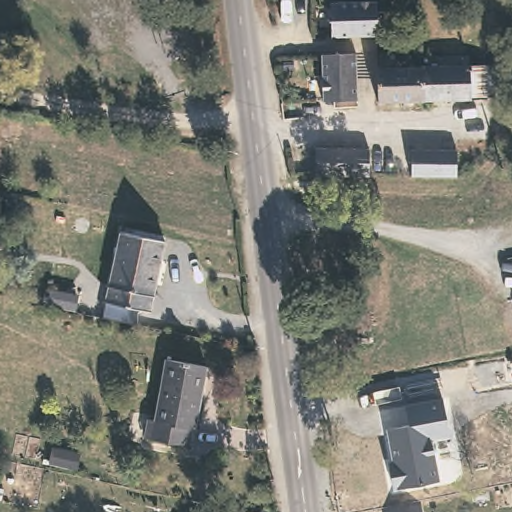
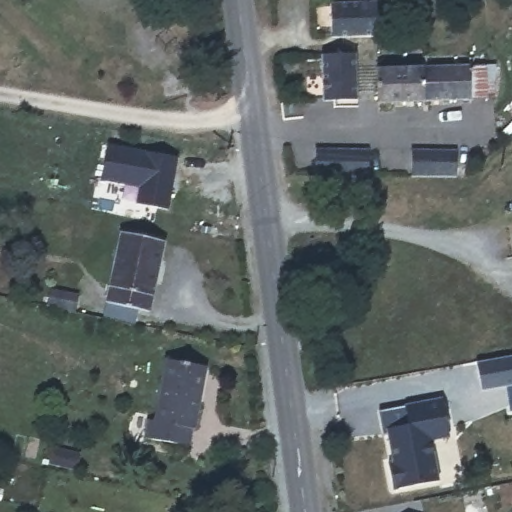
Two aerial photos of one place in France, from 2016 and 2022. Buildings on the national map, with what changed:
unchanged [(383,1),(384,37),(336,39),(334,2),(383,1)]
unchanged [(357,55),(358,103),(322,104),(320,56),(357,55)]
unchanged [(478,64),(480,97),(431,99),(431,65),(478,64)]
unchanged [(384,100),(384,66),(431,65),(431,99),(384,100)]
new [(169,208),(138,203),(140,187),(101,180),(108,145),(177,157),(169,208)]
unchanged [(454,145),(454,174),(409,173),(409,145),(454,145)]
unchanged [(374,149),(374,178),(319,177),(319,148),(374,149)]
unchanged [(164,236),(154,307),(106,300),(117,229),(164,236)]
unchanged [(205,365),(197,426),(192,426),(189,444),(144,437),(148,418),(154,419),(164,359),(205,365)]
unchanged [(439,442),(433,452),(442,481),(394,491),(387,463),(394,462),(387,431),(411,426),(407,405),(447,399),(454,437),(439,442)]

